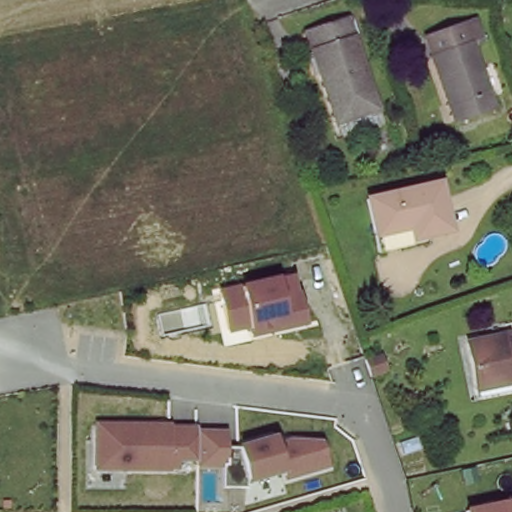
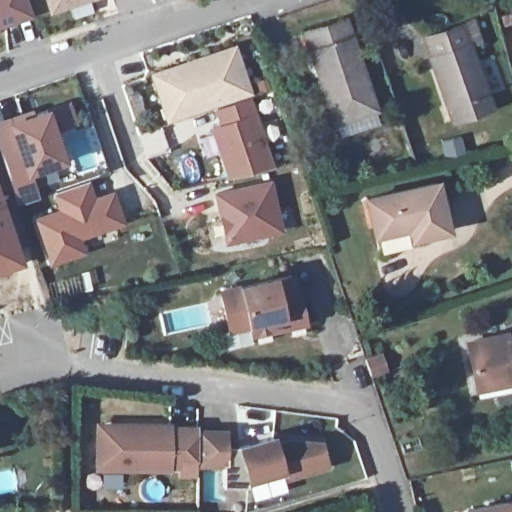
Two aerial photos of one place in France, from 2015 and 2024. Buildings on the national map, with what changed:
new [(15,6),(0,11),(0,0),(13,0),(15,6)]
new [(48,10),(45,0),(81,0),(48,10)]
unchanged [(376,97),(335,111),(321,70),(314,71),(306,46),(312,43),(307,27),(348,15),(376,97)]
unchanged [(463,19),(471,37),(461,42),(485,102),(443,119),(420,57),(425,54),(420,37),(463,19)]
new [(235,42),(250,96),(214,107),(165,121),(149,72),(235,42)]
new [(257,111),(273,166),(225,176),(210,126),(218,123),(214,107),(250,96),(257,111)]
new [(29,112),(45,106),(70,100),(75,122),(54,125),(67,160),(30,173),(37,195),(17,202),(0,152),(0,117),(27,107),(29,112)]
new [(282,231),(225,244),(213,190),(272,177),(282,231)]
new [(80,238),(85,253),(47,263),(32,216),(57,208),(52,191),(88,179),(94,195),(113,188),(123,222),(80,238)]
unchanged [(412,233),(414,241),(381,250),(367,199),(437,181),(450,223),(412,233)]
new [(0,270),(0,198),(21,263),(0,270)]
unchanged [(217,290),(238,286),(277,276),(295,273),(307,323),(250,338),(246,328),(228,332),(217,290)]
unchanged [(480,379),(472,344),(512,336),(512,383),(482,389),(480,379)]
unchanged [(383,342),(388,358),(375,363),(370,347),(383,342)]
unchanged [(198,424),(198,462),(182,462),(182,472),(97,470),(98,419),(198,424)]
unchanged [(285,480),(282,473),(249,482),(248,489),(222,489),(223,468),(198,467),(198,462),(198,424),(228,424),(228,444),(238,444),(275,434),(278,441),(290,437),(322,441),(328,467),(285,480)]
unchanged [(512,499),(512,512),(465,512),(465,508),(512,499)]

